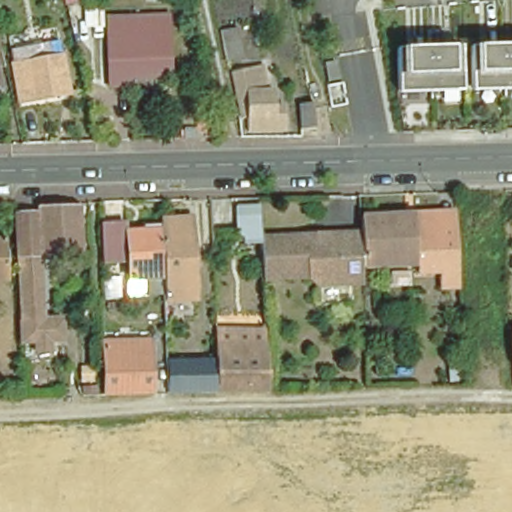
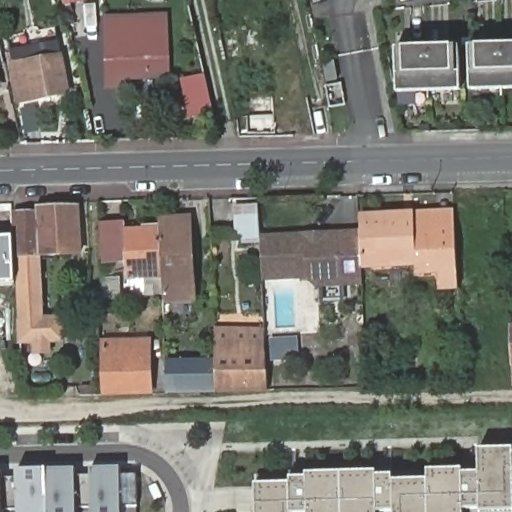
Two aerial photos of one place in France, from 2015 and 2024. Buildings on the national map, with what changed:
unchanged [(62,9),(61,0),(90,0),(90,5),(62,9)]
demolished [(479,5),(479,0),(497,0),(497,34),(497,43),(474,43),(473,24),(470,24),(469,5),(479,5)]
unchanged [(171,75),(133,76),(133,86),(112,87),(109,16),(169,14),(171,75)]
unchanged [(242,55),(229,57),(225,30),(239,29),(242,55)]
unchanged [(63,45),(72,99),(23,108),(13,55),(63,45)]
unchanged [(468,51),(512,49),(512,93),(470,95),(468,51)]
unchanged [(461,95),(397,98),(395,54),(459,51),(461,95)]
demolished [(246,132),(246,119),(240,119),(230,74),(253,69),(261,89),(271,89),(272,109),(273,131),(246,132)]
unchanged [(3,92),(0,93),(0,78),(3,92)]
unchanged [(82,259),(21,262),(19,217),(41,215),(40,209),(81,208),(82,259)]
unchanged [(86,260),(46,263),(48,325),(67,325),(69,349),(56,349),(56,357),(41,357),(40,348),(25,348),(21,262),(82,259),(81,208),(84,208),(86,260)]
unchanged [(362,238),(364,273),(364,275),(365,289),(319,291),(312,284),(310,283),(263,284),(261,249),(245,249),(244,229),(236,229),(235,212),(259,211),(260,243),(310,240),(362,238)]
unchanged [(362,228),(361,221),(405,219),(413,219),(436,218),(437,225),(456,224),(456,237),(458,282),(459,293),(441,293),(440,279),(418,280),(417,267),(402,268),(401,270),(364,273),(362,238),(362,228)]
unchanged [(168,304),(167,283),(164,234),(164,229),(195,228),(198,306),(168,307),(168,304)]
unchanged [(133,260),(106,263),(105,230),(131,229),(131,236),(164,234),(167,283),(134,284),(133,260)]
unchanged [(4,238),(6,279),(0,280),(0,238),(4,238)]
unchanged [(215,349),(215,334),(265,335),(266,349),(267,364),(269,397),(217,398),(216,364),(215,349)]
unchanged [(147,342),(150,391),(106,392),(104,343),(147,342)]
unchanged [(172,367),(216,364),(217,398),(172,399),(172,367)]
new [(480,511),(464,512),(465,512),(259,512),(258,485),(290,484),(290,477),(307,477),(307,473),(377,472),(378,476),(394,475),(395,481),(428,480),(428,471),(464,469),(464,474),(479,474),(478,450),(512,449),(512,512),(480,512),(480,511)]
new [(138,507),(121,508),(121,512),(91,512),(91,508),(78,509),(78,512),(19,512),(18,510),(3,511),(4,512),(0,512),(0,471),(2,471),(3,479),(17,479),(17,471),(77,469),(77,477),(91,476),(91,469),(122,468),(123,476),(136,475),(138,507)]

